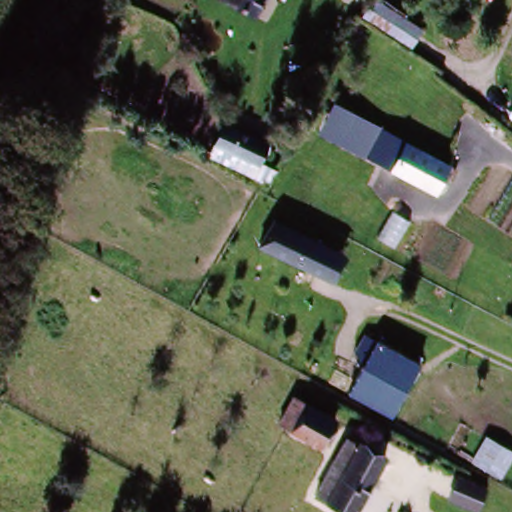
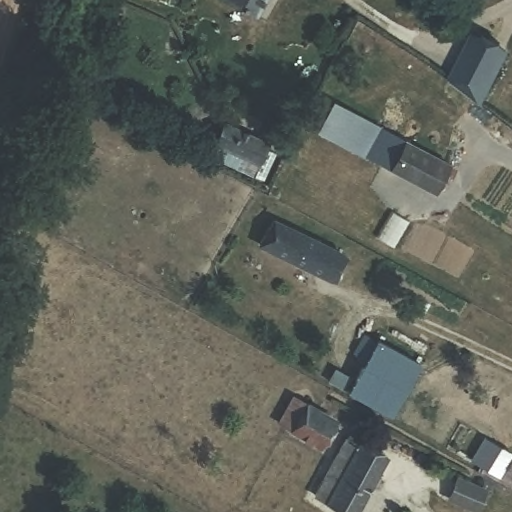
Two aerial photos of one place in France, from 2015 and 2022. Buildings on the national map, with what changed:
unchanged [(218,7),(221,0),(262,0),(253,22),(218,7)]
new [(451,78),(461,61),(477,34),(508,52),(491,85),(481,102),(451,78)]
unchanged [(371,129),(408,148),(396,171),(359,153),(371,129)]
unchanged [(269,154),(260,171),(221,151),(230,134),(269,154)]
unchanged [(275,217),(354,261),(330,289),(257,246),(275,217)]
unchanged [(392,422),(347,398),(377,344),(420,369),(392,422)]
unchanged [(344,427),(330,450),(266,415),(280,391),(344,427)]
unchanged [(504,484),(446,451),(461,425),(512,454),(512,470),(504,484)]
unchanged [(384,465),(361,512),(319,512),(311,508),(324,480),(317,477),(325,455),(338,460),(345,446),(384,465)]
unchanged [(482,495),(472,512),(462,512),(432,495),(444,474),(482,495)]

